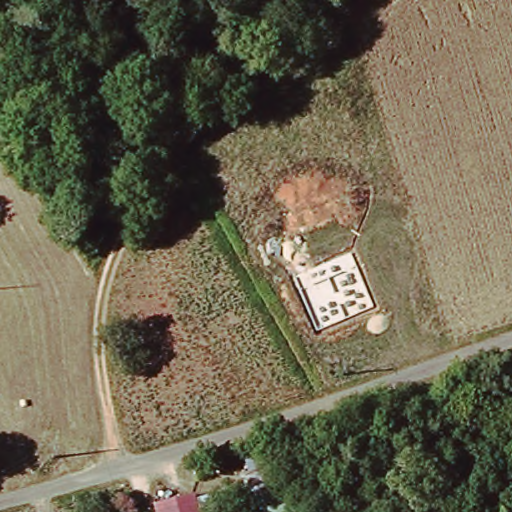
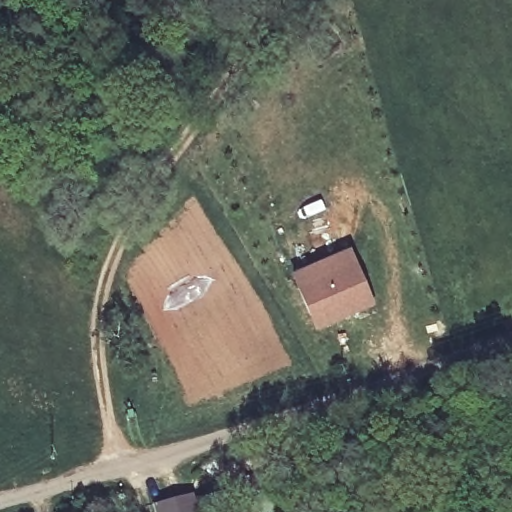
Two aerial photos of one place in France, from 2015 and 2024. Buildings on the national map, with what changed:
new [(352,250),(376,306),(316,332),(292,276),(352,250)]
unchanged [(247,512),(218,512),(216,500),(243,494),(247,512)]
unchanged [(204,496),(209,512),(173,512),(171,506),(204,496)]

